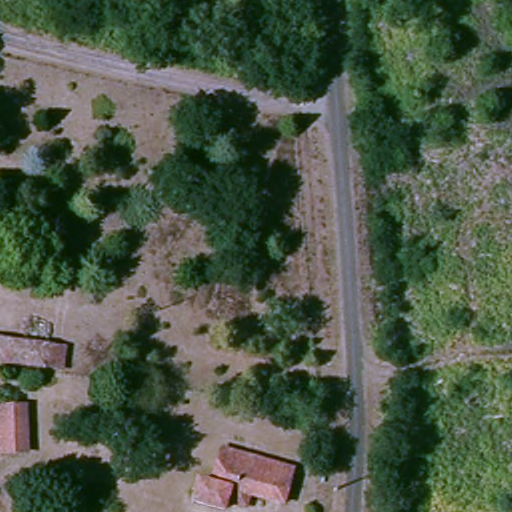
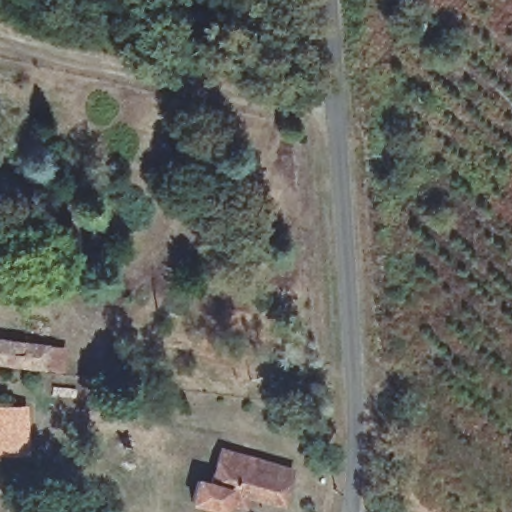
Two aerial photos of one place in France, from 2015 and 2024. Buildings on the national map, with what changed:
unchanged [(57,350),(53,372),(0,366),(0,343),(57,350)]
unchanged [(19,407),(22,449),(0,451),(0,408),(19,407)]
unchanged [(292,466),(281,502),(228,488),(222,505),(194,497),(200,477),(209,479),(219,446),(292,466)]

